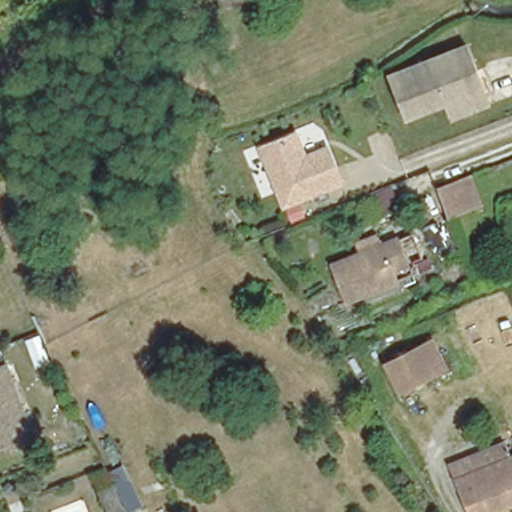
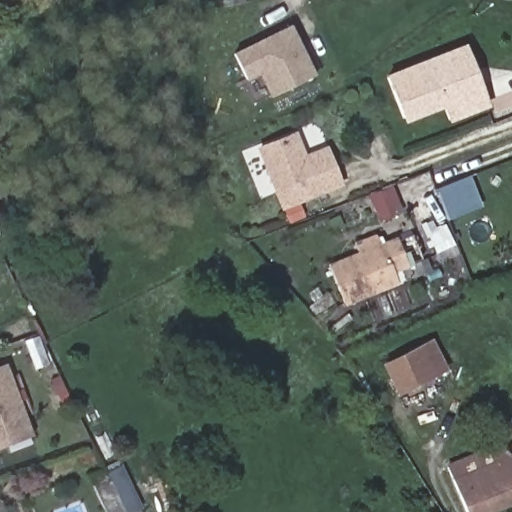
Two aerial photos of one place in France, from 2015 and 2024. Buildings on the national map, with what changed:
new [(277,99),(265,75),(253,82),(247,70),(240,57),(295,29),(302,41),(320,77),(277,99)]
unchanged [(490,102),(450,117),(443,100),(403,115),(388,74),(467,44),(490,102)]
unchanged [(336,186),(280,209),(257,150),(291,137),(297,154),(300,159),(322,151),(336,186)]
unchanged [(437,188),(469,175),(480,206),(448,219),(437,188)]
unchanged [(398,279),(345,299),(330,262),(398,236),(408,262),(394,267),(398,279)]
unchanged [(387,363),(422,344),(434,338),(448,366),(436,372),(401,391),(387,363)]
unchanged [(0,446),(0,368),(3,367),(27,430),(29,435),(3,445),(0,446)]
unchanged [(479,512),(469,512),(449,463),(503,440),(510,456),(512,456),(512,498),(479,512)]
unchanged [(110,461),(134,512),(116,512),(95,469),(110,461)]

